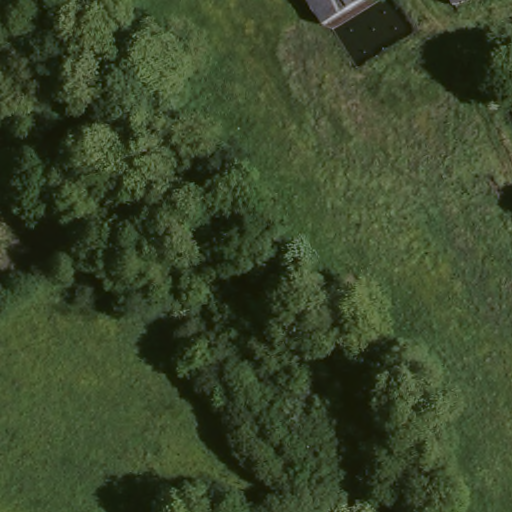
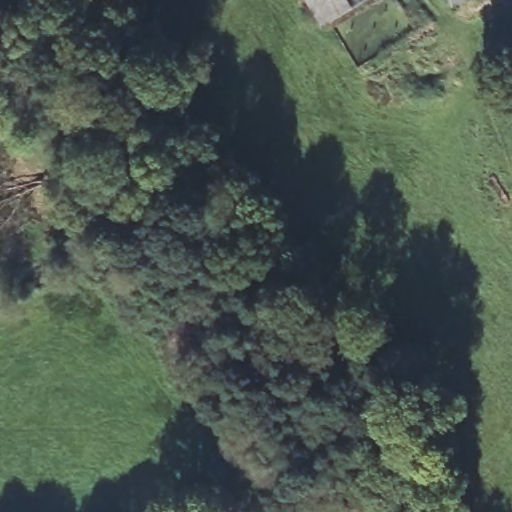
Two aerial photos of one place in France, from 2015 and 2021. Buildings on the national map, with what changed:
unchanged [(320,0),(372,0),(337,26),(320,0)]
unchanged [(464,0),(467,0),(464,1),(464,0)]

